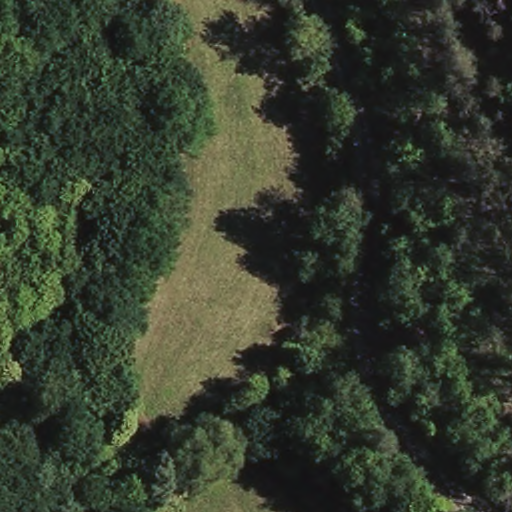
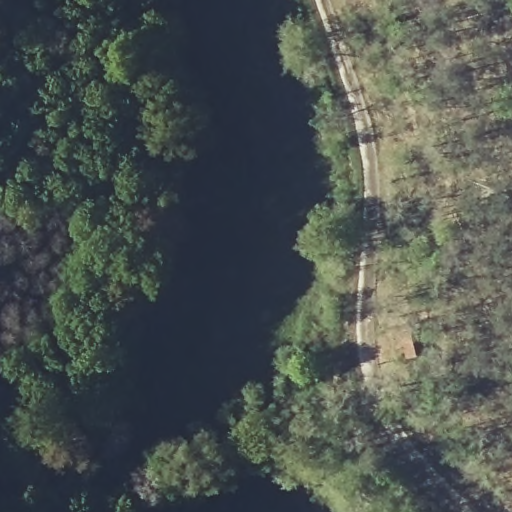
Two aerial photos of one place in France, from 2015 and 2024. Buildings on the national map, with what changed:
unchanged [(426,349),(407,355),(401,336),(420,330),(426,349)]

